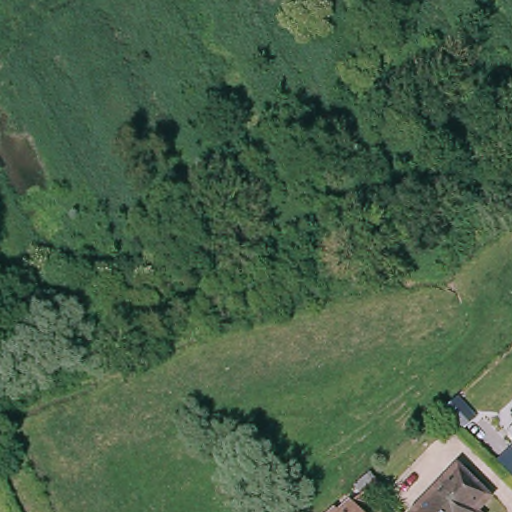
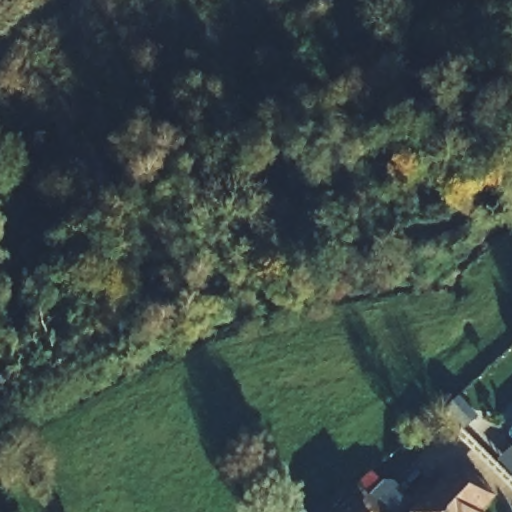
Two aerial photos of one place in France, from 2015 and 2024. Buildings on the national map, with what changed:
unchanged [(512,440),(512,447),(508,443),(512,440)]
unchanged [(456,470),(487,500),(476,512),(417,512),(456,470)]
unchanged [(386,489),(371,502),(380,512),(341,512),(360,493),(354,487),(370,472),(386,489)]
unchanged [(333,508),(338,512),(330,512),(333,508)]

